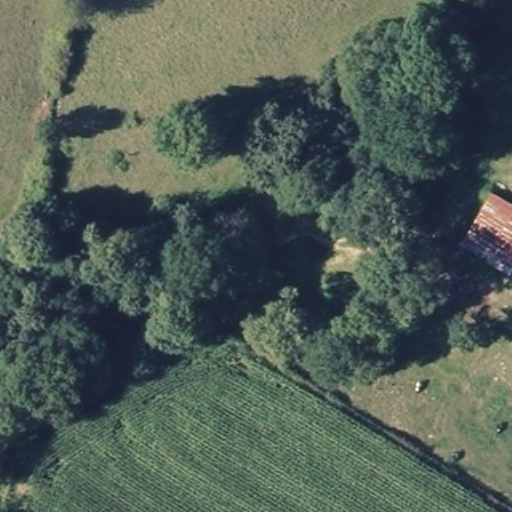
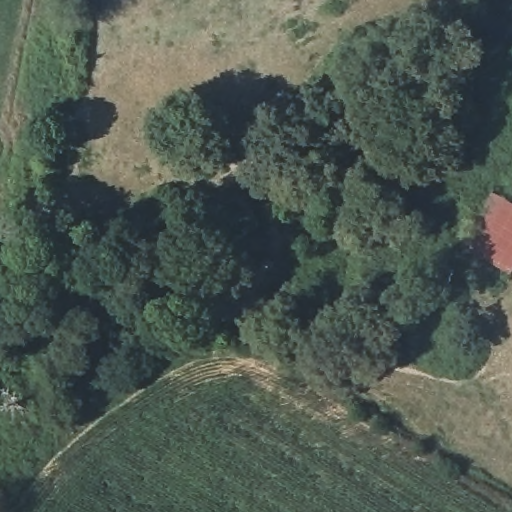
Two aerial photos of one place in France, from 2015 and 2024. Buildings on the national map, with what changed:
unchanged [(492,188),(512,200),(512,277),(457,245),(492,188)]

